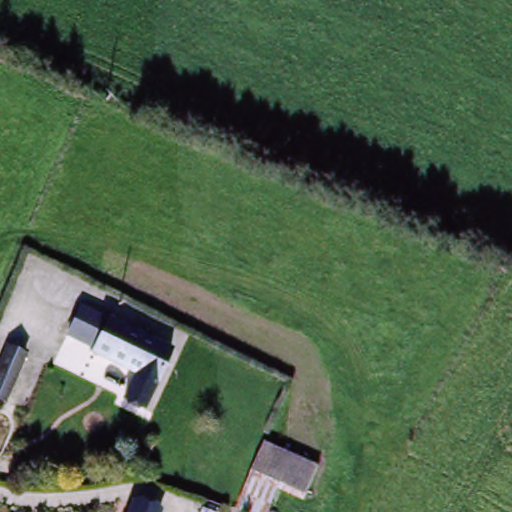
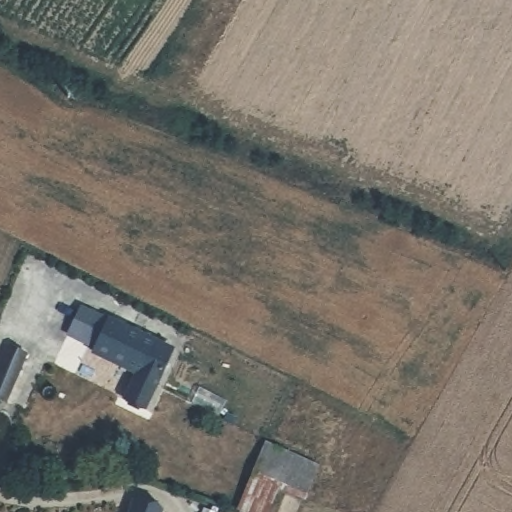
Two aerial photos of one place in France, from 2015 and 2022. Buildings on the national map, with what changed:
unchanged [(137,411),(116,400),(129,373),(86,352),(89,346),(62,331),(75,304),(165,351),(137,411)]
unchanged [(0,403),(0,354),(3,346),(22,354),(2,404),(0,403)]
unchanged [(317,468),(305,494),(276,481),(250,469),(261,442),(317,468)]
unchanged [(250,469),(276,481),(262,512),(239,512),(233,510),(250,469)]
unchanged [(149,510),(148,512),(120,512),(125,501),(149,510)]
unchanged [(219,512),(194,512),(196,504),(219,511),(219,512)]

